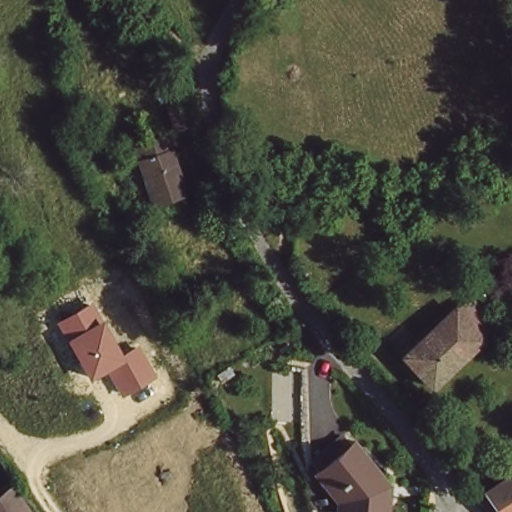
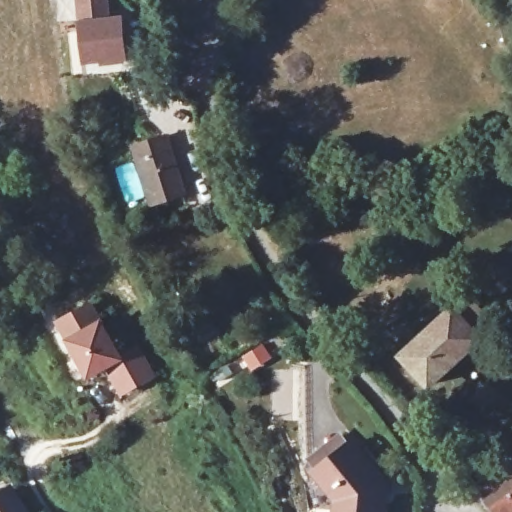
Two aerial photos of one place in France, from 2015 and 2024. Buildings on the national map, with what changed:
new [(103,21),(115,19),(120,58),(81,63),(74,0),(100,0),(103,21)]
unchanged [(508,38),(501,19),(512,15),(512,36),(508,38)]
unchanged [(186,194),(156,206),(136,152),(166,140),(186,194)]
unchanged [(85,301),(114,354),(131,344),(147,372),(116,389),(101,362),(83,373),(53,319),(85,301)]
unchanged [(487,343),(442,384),(413,355),(457,311),(487,343)]
unchanged [(397,497),(395,506),(390,505),(388,512),(348,512),(349,507),(324,476),(315,466),(346,441),(354,451),(385,488),(389,486),(397,497)]
unchanged [(499,512),(489,495),(512,480),(512,512),(499,512)]
unchanged [(24,512),(0,512),(0,492),(7,487),(24,512)]

